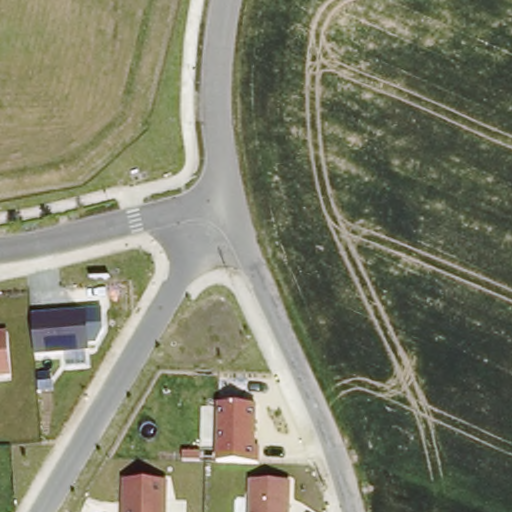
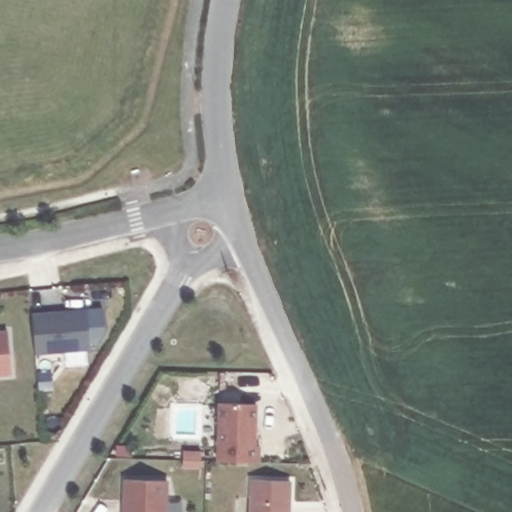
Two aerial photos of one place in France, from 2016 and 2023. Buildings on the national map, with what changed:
unchanged [(102,310),(105,332),(98,344),(90,345),(90,352),(87,352),(87,366),(67,367),(66,353),(35,356),(32,314),(102,310)]
unchanged [(0,377),(0,333),(7,332),(11,376),(0,377)]
unchanged [(255,447),(260,447),(260,465),(215,462),(217,403),(257,406),(255,447)]
unchanged [(121,512),(122,479),(168,481),(168,512),(121,512)]
unchanged [(291,481),(291,512),(249,512),(250,480),(291,481)]

